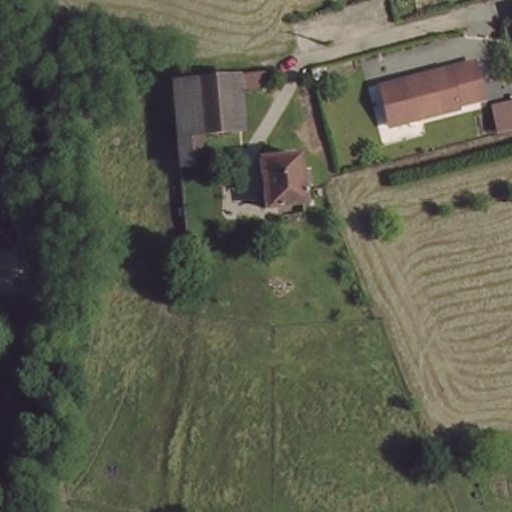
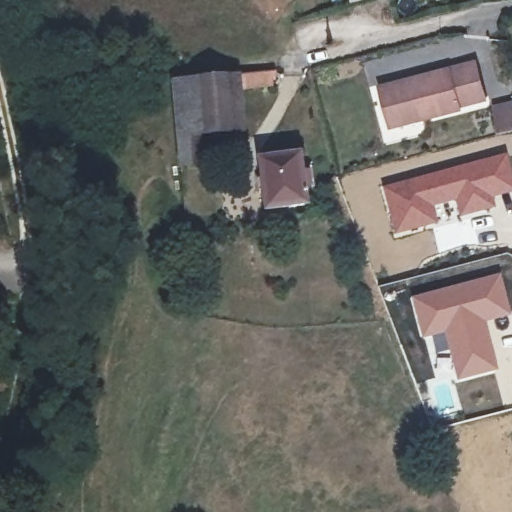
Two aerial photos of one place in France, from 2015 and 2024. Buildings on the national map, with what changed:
unchanged [(477,59),(486,93),(460,100),(461,103),(426,113),(426,109),(391,118),(382,84),(477,59)]
unchanged [(234,76),(238,129),(206,131),(201,79),(234,76)]
unchanged [(186,165),(177,80),(201,79),(206,131),(209,164),(186,165)]
unchanged [(512,123),(497,126),(492,100),(512,96),(512,123)]
new [(512,172),(512,192),(493,197),(496,208),(456,219),(452,203),(436,208),(440,220),(393,235),(381,185),(506,152),(512,172)]
unchanged [(300,154),(302,173),(309,172),(310,184),(304,185),(306,203),(267,207),(261,158),(300,154)]
new [(500,273),(510,317),(488,323),(499,371),(456,382),(441,335),(420,339),(409,296),(500,273)]

